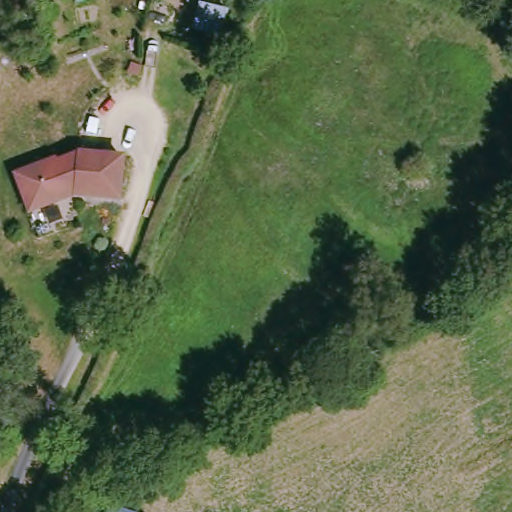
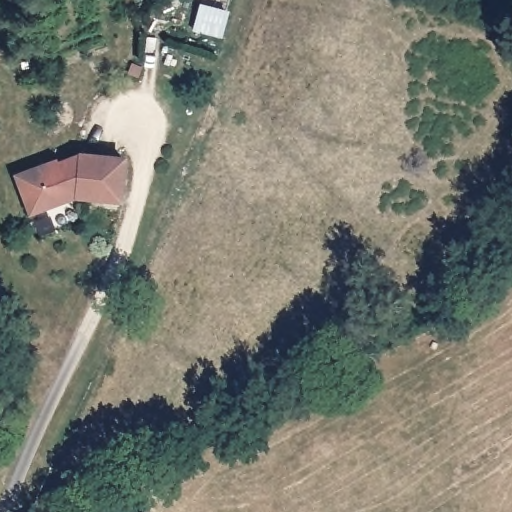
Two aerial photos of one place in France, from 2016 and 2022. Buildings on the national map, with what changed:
unchanged [(200,0),(228,8),(222,33),(192,27),(198,0),(200,0)]
unchanged [(74,154),(76,150),(122,147),(125,189),(85,192),(81,187),(75,188),(68,197),(30,213),(14,177),(54,159),(55,162),(74,154)]

